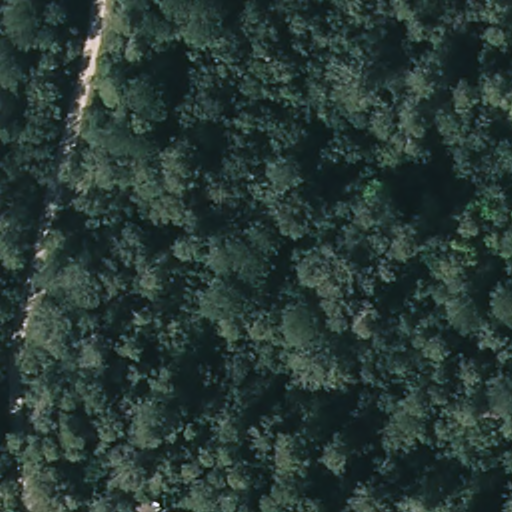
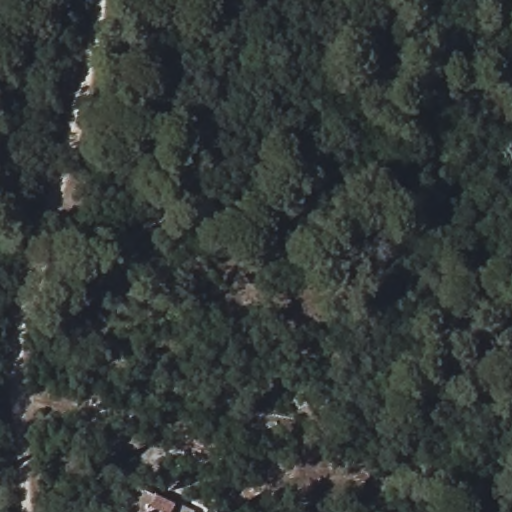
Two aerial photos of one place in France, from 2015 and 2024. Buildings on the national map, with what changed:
unchanged [(176,512),(132,512),(137,496),(155,497),(158,500),(176,512)]

